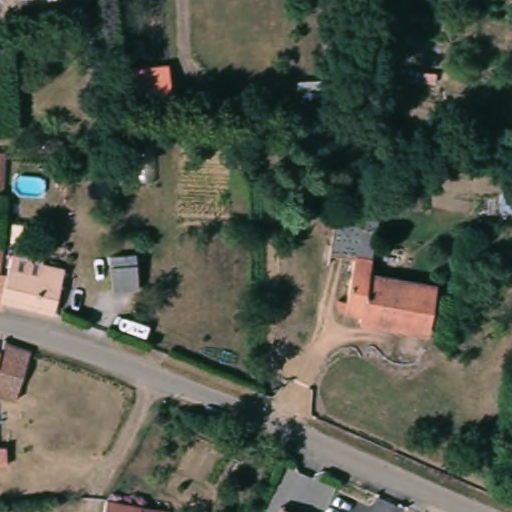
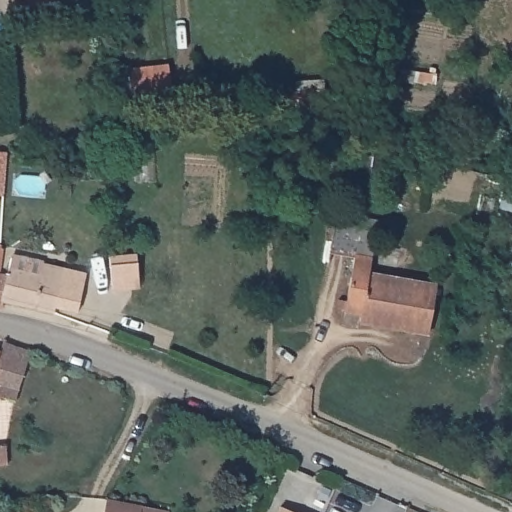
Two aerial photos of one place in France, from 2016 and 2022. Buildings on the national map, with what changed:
unchanged [(164,71),(167,92),(127,97),(123,75),(164,71)]
unchanged [(329,97),(331,116),(300,121),(298,103),(329,97)]
unchanged [(1,201),(0,201),(0,150),(6,150),(1,201)]
unchanged [(511,169),(512,169),(512,210),(500,207),(511,169)]
unchanged [(335,295),(349,297),(353,254),(330,250),(336,211),(381,217),(372,272),(437,283),(430,333),(357,322),(358,311),(334,307),(335,295)]
unchanged [(2,262),(0,293),(0,242),(5,242),(2,262)]
unchanged [(42,256),(69,257),(65,306),(17,297),(17,317),(0,312),(0,293),(2,262),(40,267),(42,256)]
unchanged [(100,268),(99,263),(110,262),(112,269),(124,268),(125,293),(96,293),(94,269),(100,268)]
unchanged [(37,342),(22,386),(20,392),(0,388),(0,348),(6,335),(37,342)]
unchanged [(9,457),(0,457),(0,438),(7,438),(9,457)]
unchanged [(112,492),(122,493),(121,502),(130,502),(130,495),(150,498),(149,507),(169,510),(169,512),(107,512),(107,502),(112,492)]
unchanged [(286,512),(272,512),(274,507),(286,512)]

